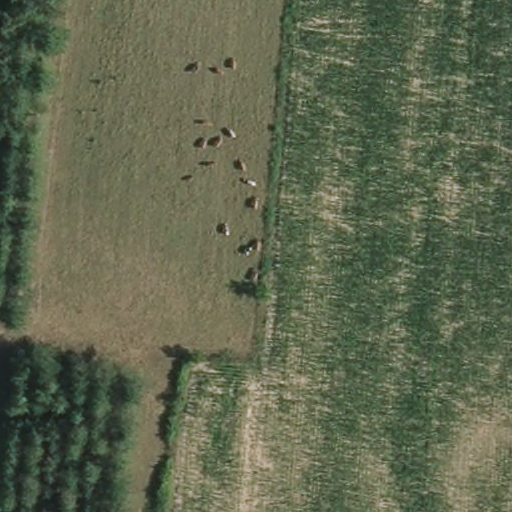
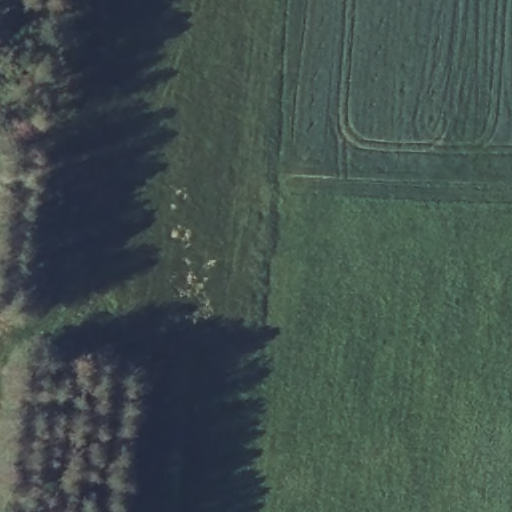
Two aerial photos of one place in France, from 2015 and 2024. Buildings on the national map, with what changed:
[]

